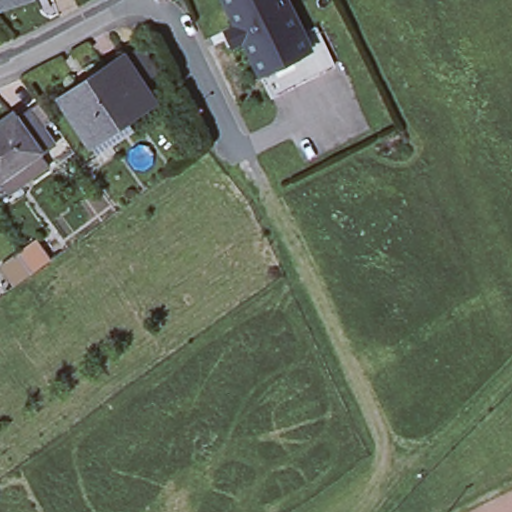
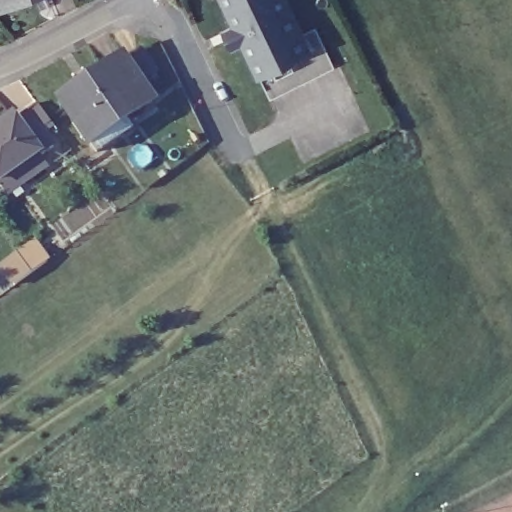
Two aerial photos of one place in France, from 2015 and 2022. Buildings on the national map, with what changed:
unchanged [(0,2),(0,0),(6,0),(0,2)]
unchanged [(306,38),(316,34),(333,70),(272,99),(245,43),(236,47),(230,35),(239,30),(225,0),(288,0),(306,38)]
unchanged [(132,51),(146,73),(130,83),(142,103),(78,144),(50,99),(115,58),(116,61),(132,51)]
unchanged [(43,152),(30,161),(25,155),(0,173),(0,122),(1,121),(14,112),(43,152)]
unchanged [(68,284),(10,324),(0,308),(0,297),(13,288),(0,270),(0,262),(35,237),(68,284)]

